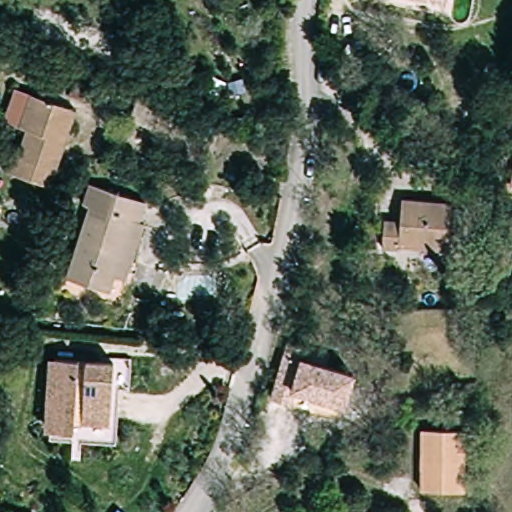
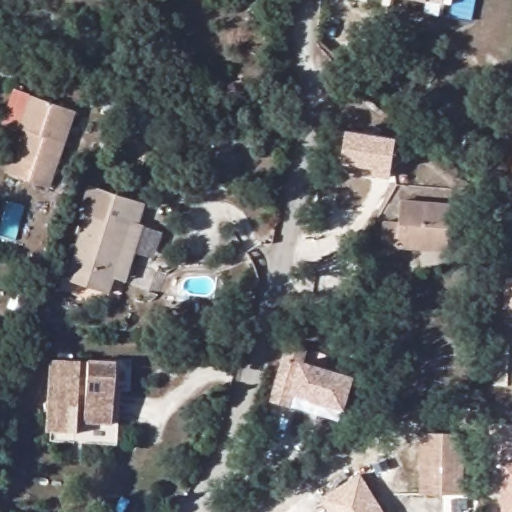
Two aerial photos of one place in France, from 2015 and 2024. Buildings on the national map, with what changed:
unchanged [(48,184),(6,169),(12,152),(16,154),(25,128),(18,123),(29,91),(38,94),(76,108),(48,184)]
new [(341,162),(346,131),(396,138),(392,170),(341,162)]
unchanged [(510,189),(512,180),(512,189),(510,189)]
unchanged [(136,197),(129,219),(121,217),(102,287),(66,277),(84,210),(78,207),(84,184),(136,197)]
unchanged [(379,250),(379,216),(397,219),(398,199),(444,201),(445,250),(379,250)]
unchanged [(288,408),(271,405),(291,345),(311,350),(306,363),(360,377),(351,411),(293,396),(288,408)]
unchanged [(111,440),(44,437),(44,413),(38,413),(40,377),(45,377),(46,360),(104,362),(105,356),(123,356),(121,388),(113,388),(112,418),(111,440)]
unchanged [(419,432),(462,432),(462,494),(416,492),(419,432)]
new [(512,462),(512,512),(501,512),(501,462),(512,462)]
new [(321,499),(361,474),(385,512),(329,512),(321,499)]

